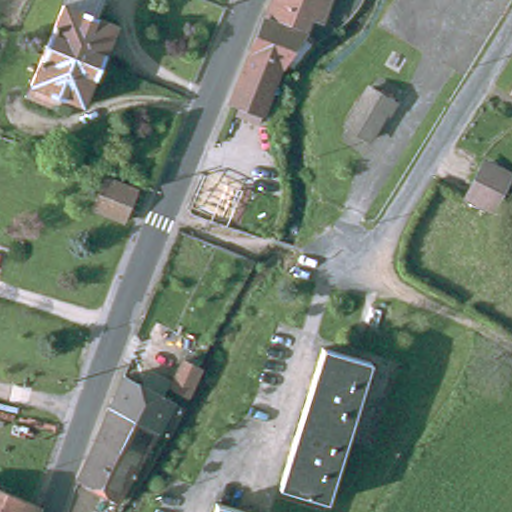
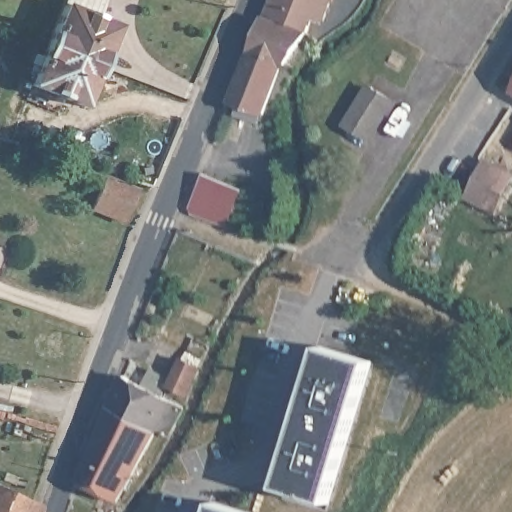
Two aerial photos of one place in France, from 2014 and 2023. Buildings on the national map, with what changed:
unchanged [(42,45),(60,1),(59,0),(95,0),(90,13),(112,22),(96,63),(42,45)]
unchanged [(324,0),(317,18),(307,15),(305,25),(300,32),(260,15),(266,0),(324,0)]
unchanged [(280,62),(276,61),(257,114),(226,102),(260,15),(300,32),(280,62)]
unchanged [(79,106),(25,85),(42,45),(96,63),(79,106)]
unchanged [(368,135),(346,122),(370,81),(391,95),(368,135)]
unchanged [(485,165),(508,176),(492,211),(469,200),(485,165)]
new [(187,210),(203,172),(241,189),(226,225),(187,210)]
unchanged [(97,206),(104,189),(111,175),(142,189),(136,204),(128,220),(97,206)]
unchanged [(277,485),(317,345),(350,354),(366,359),(325,499),(311,495),(277,485)]
unchanged [(178,352),(197,361),(182,395),(163,386),(178,352)]
unchanged [(100,410),(113,375),(175,406),(161,439),(146,432),(100,410)]
unchanged [(110,501),(71,482),(100,410),(146,432),(110,501)]
unchanged [(0,486),(32,500),(28,512),(0,512),(0,486)]
unchanged [(215,501),(245,510),(254,512),(213,512),(215,501)]

